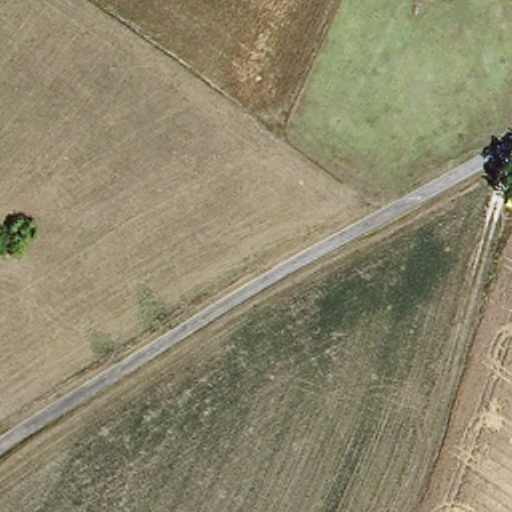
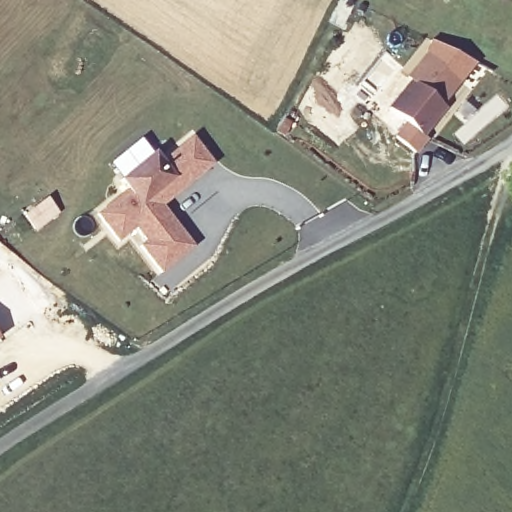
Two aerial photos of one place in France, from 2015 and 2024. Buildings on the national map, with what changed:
new [(462,81),(444,106),(447,108),(425,134),(429,138),(415,153),(395,136),(405,124),(387,109),(409,83),(404,80),(425,51),(462,81)]
new [(116,184),(150,156),(158,165),(190,140),(211,167),(179,194),(170,201),(159,210),(192,250),(159,277),(137,250),(143,245),(132,231),(115,245),(93,218),(123,193),(116,184)]
unchanged [(27,237),(12,249),(2,239),(17,226),(27,237)]

